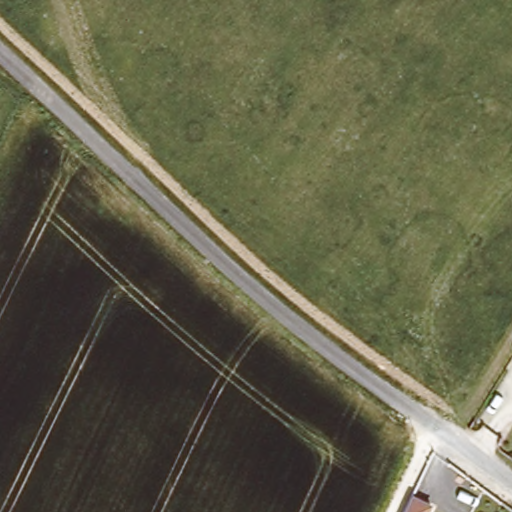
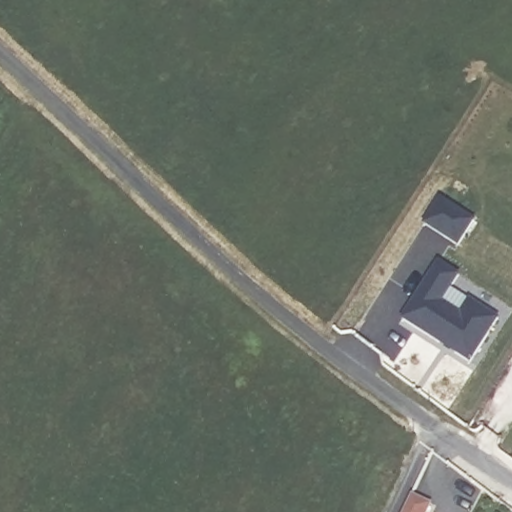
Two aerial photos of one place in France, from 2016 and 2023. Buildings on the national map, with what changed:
new [(443,199),(477,221),(461,247),(428,224),(443,199)]
new [(442,263),(463,276),(446,302),(464,315),(473,301),(502,320),(474,363),(406,319),(442,263)]
unchanged [(434,502),(430,512),(403,512),(413,490),(434,502)]

